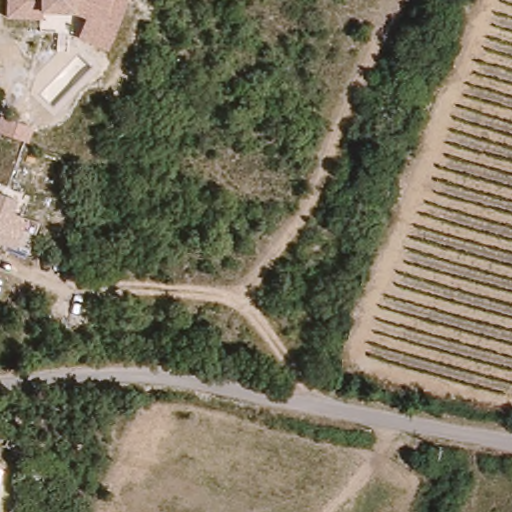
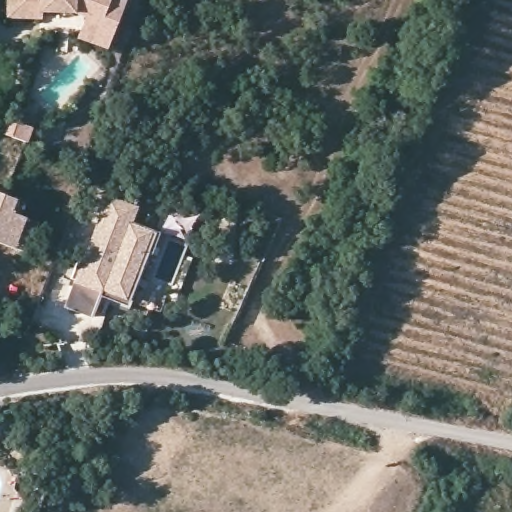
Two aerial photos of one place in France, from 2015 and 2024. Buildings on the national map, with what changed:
unchanged [(6,0),(124,0),(103,51),(76,38),(83,20),(75,14),(40,16),(40,20),(6,18),(6,0)]
unchanged [(11,216),(34,225),(23,255),(10,252),(0,247),(0,194),(15,199),(11,216)]
new [(137,206),(132,221),(155,231),(127,306),(100,295),(92,316),(65,306),(108,196),(137,206)]

